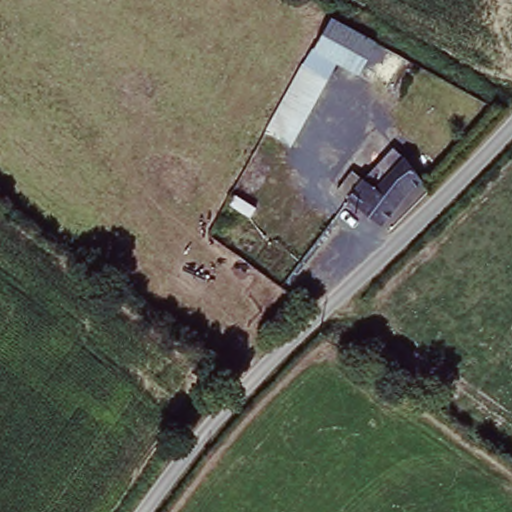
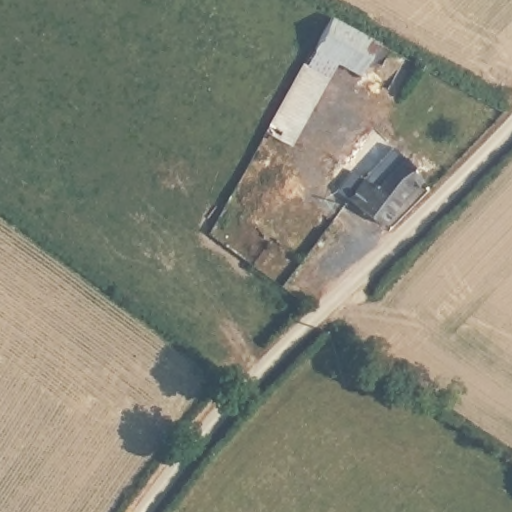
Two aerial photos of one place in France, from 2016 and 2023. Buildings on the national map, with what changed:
unchanged [(375,45),(361,79),(336,65),(298,145),(275,135),(311,54),(330,16),(375,45)]
unchanged [(407,188),(395,205),(381,226),(350,209),(370,185),(375,186),(390,170),(400,160),(409,151),(419,145),(436,162),(407,188)]
unchanged [(245,185),(267,200),(253,220),(231,205),(236,196),(245,185)]

